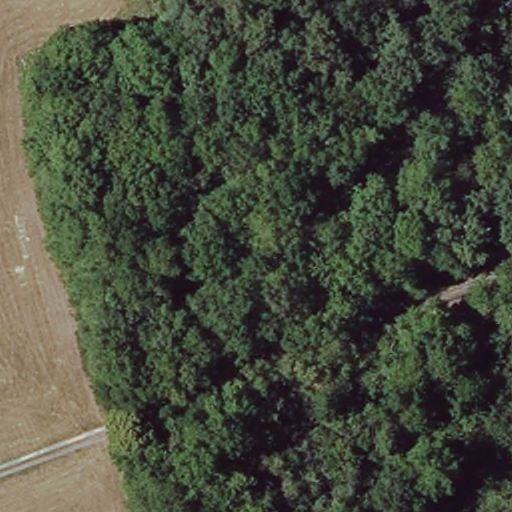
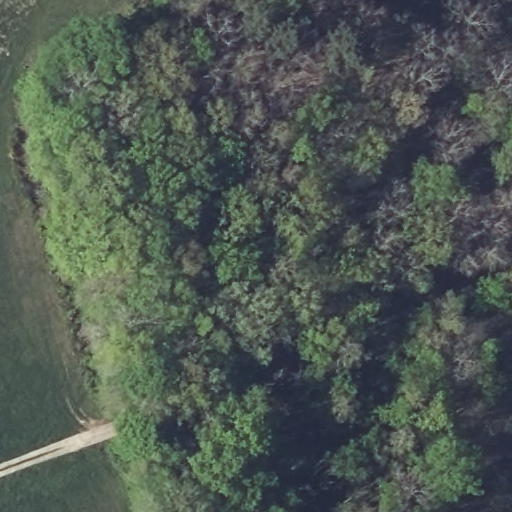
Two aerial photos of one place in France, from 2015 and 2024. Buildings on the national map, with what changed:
[]

